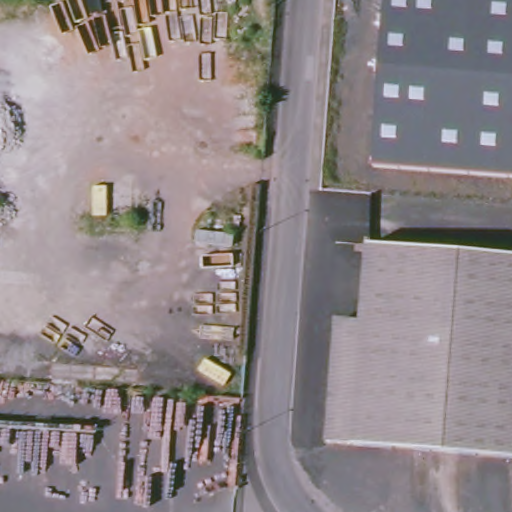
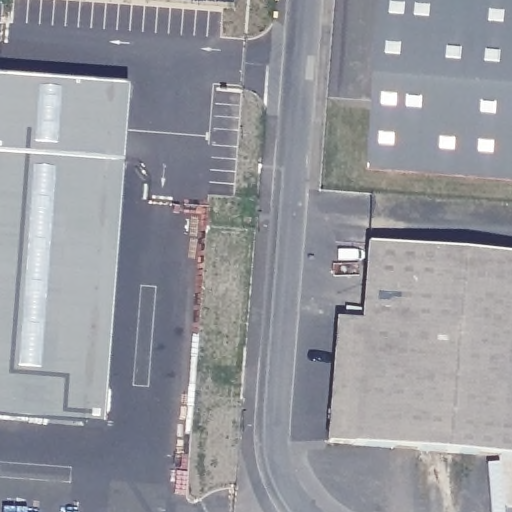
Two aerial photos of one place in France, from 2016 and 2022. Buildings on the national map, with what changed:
unchanged [(373,166),(386,0),(512,0),(512,177),(373,166)]
new [(101,427),(0,419),(0,77),(128,87),(101,427)]
unchanged [(328,443),(337,323),(362,325),(370,243),(512,255),(512,458),(328,443)]

